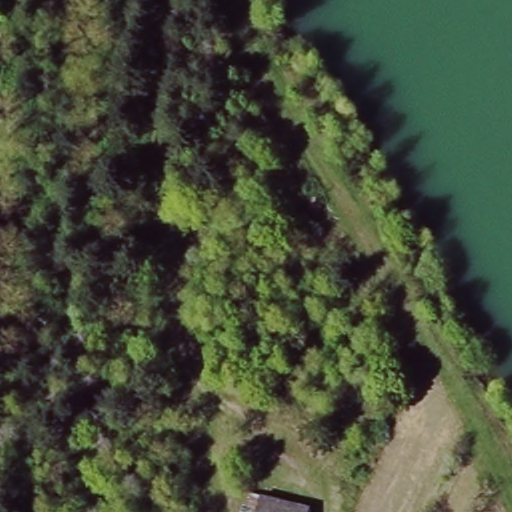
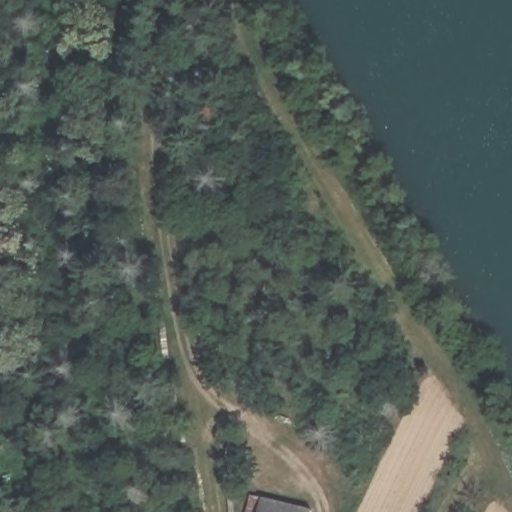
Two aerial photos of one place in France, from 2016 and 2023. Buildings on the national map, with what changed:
unchanged [(306,512),(262,512),(270,496),(306,512)]

